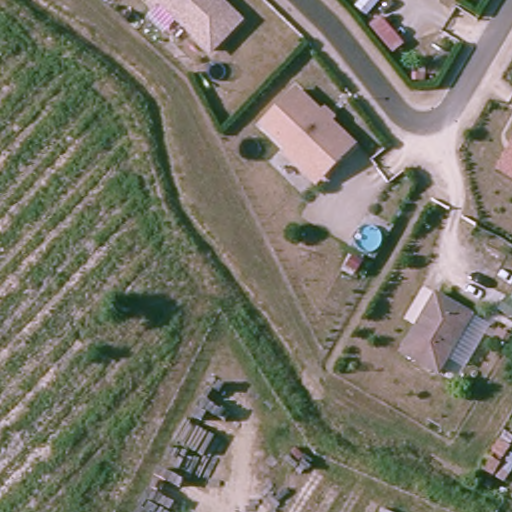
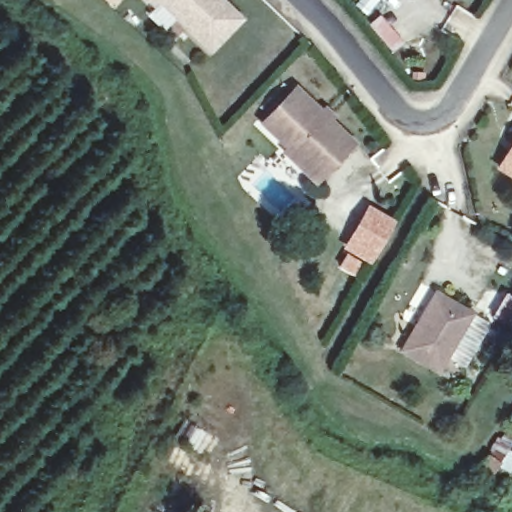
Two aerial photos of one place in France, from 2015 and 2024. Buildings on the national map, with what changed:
unchanged [(161,7),(154,0),(226,0),(247,20),(218,52),(166,3),(161,7)]
unchanged [(311,170),(292,152),(296,149),(270,124),(303,88),(329,113),(333,110),(339,116),(336,119),(361,143),(332,173),(324,182),(311,170)]
unchanged [(496,168),(512,142),(512,177),(496,168)]
new [(354,276),(338,267),(346,252),(341,249),(366,206),(394,222),(369,265),(362,261),(354,276)]
demolished [(385,232),(371,256),(365,266),(340,252),(359,217),(385,232)]
unchanged [(481,317),(448,377),(411,355),(444,296),(481,317)]
unchanged [(479,464),(505,429),(512,433),(512,482),(511,484),(479,464)]

